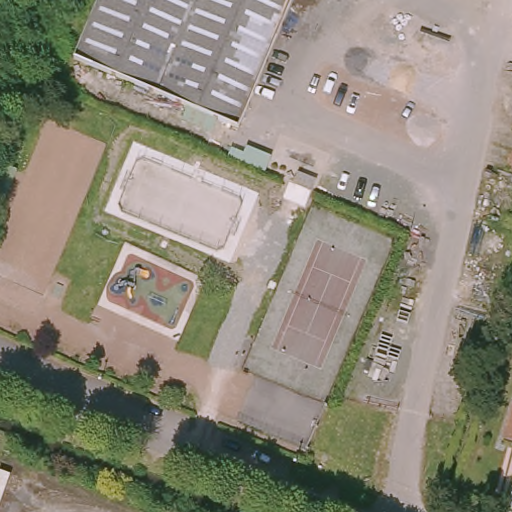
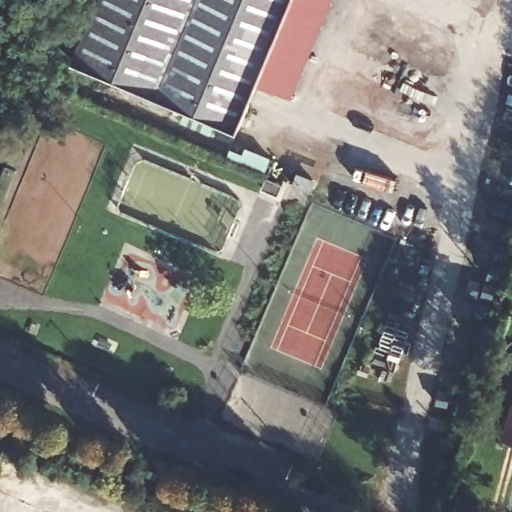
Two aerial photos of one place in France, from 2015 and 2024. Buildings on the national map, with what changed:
unchanged [(70,60),(95,0),(289,0),(235,129),(70,60)]
new [(260,84),(294,0),(333,0),(292,97),(260,84)]
unchanged [(501,437),(512,402),(512,440),(501,437)]

